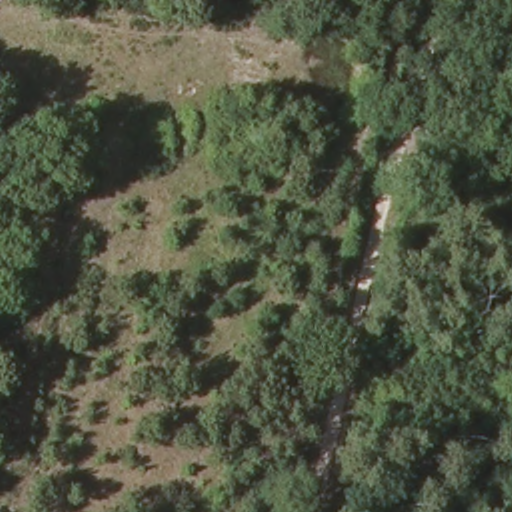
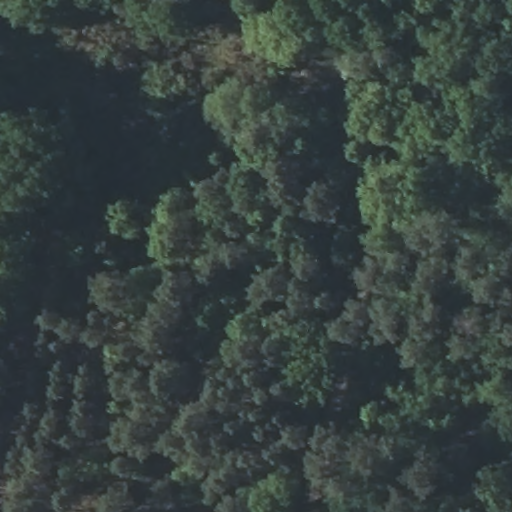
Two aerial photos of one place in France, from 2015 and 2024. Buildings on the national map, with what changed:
unchanged [(52,121),(49,140),(25,137),(28,118),(52,121)]

